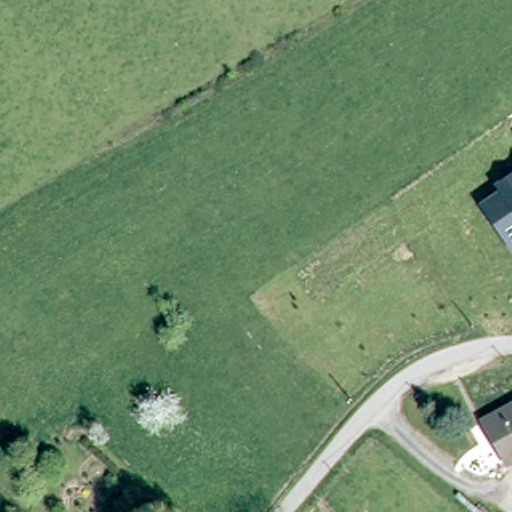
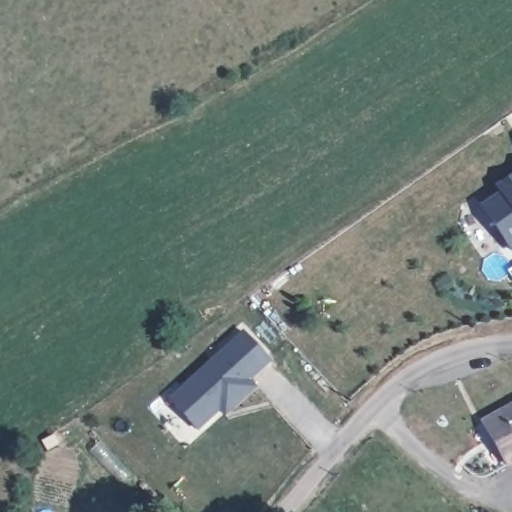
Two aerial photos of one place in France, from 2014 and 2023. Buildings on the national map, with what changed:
unchanged [(479,206),(499,192),(494,185),(512,174),(512,254),(479,206)]
new [(221,412),(199,433),(171,402),(243,333),(270,362),(249,382),(256,388),(231,412),(226,417),(221,412)]
unchanged [(498,463),(479,417),(512,403),(512,457),(498,463)]

